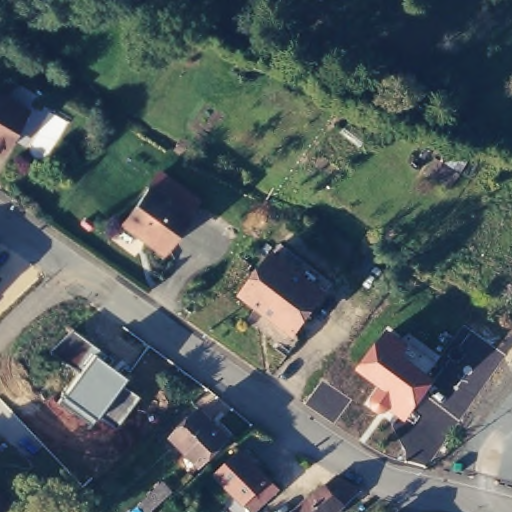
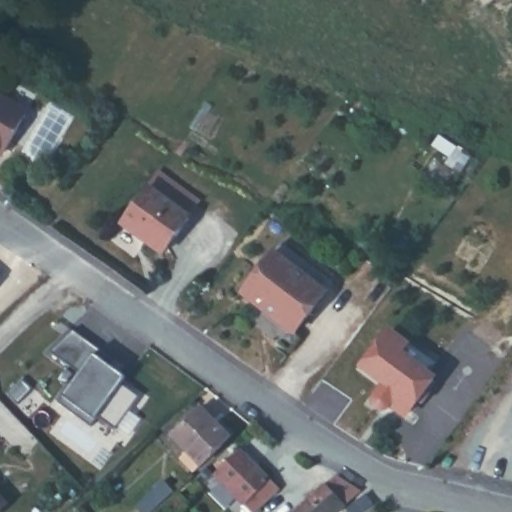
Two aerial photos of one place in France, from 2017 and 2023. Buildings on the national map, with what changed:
unchanged [(5,150),(0,150),(0,95),(27,110),(5,150)]
unchanged [(189,215),(164,250),(147,238),(148,237),(125,220),(150,186),(189,215)]
unchanged [(240,295),(271,254),(279,244),(330,282),(322,293),(291,335),(240,295)]
unchanged [(82,371),(51,352),(72,330),(107,355),(101,360),(125,378),(122,383),(139,396),(116,429),(100,415),(97,420),(95,418),(92,424),(60,402),(82,371)]
unchanged [(429,375),(433,377),(411,407),(393,395),(383,407),(374,400),(385,382),(365,366),(388,331),(405,342),(406,339),(436,362),(429,375)]
unchanged [(168,441),(195,415),(214,433),(218,430),(227,439),(223,443),(196,470),(168,441)]
unchanged [(248,512),(210,475),(212,472),(209,469),(214,464),(217,467),(235,450),(246,461),(252,466),(273,488),(250,512),(248,512)]
unchanged [(331,476),(353,490),(333,507),(337,511),(336,512),(328,512),(289,512),(330,477),(331,476)]
unchanged [(164,481),(173,491),(150,512),(129,512),(135,506),(164,481)]
unchanged [(0,512),(0,510),(2,512),(0,512)]

